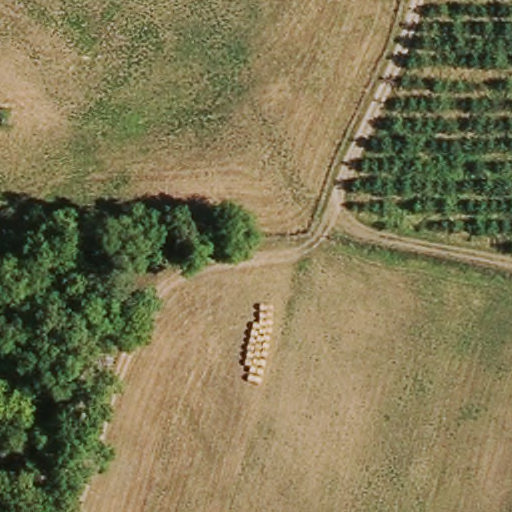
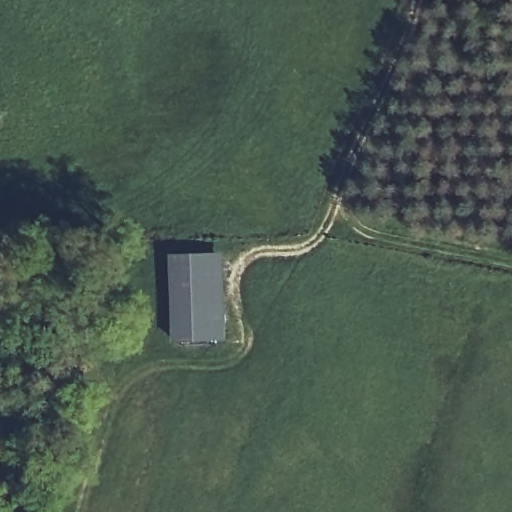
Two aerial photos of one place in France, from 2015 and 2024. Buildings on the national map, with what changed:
new [(231,340),(176,343),(172,255),(226,253),(231,340)]

